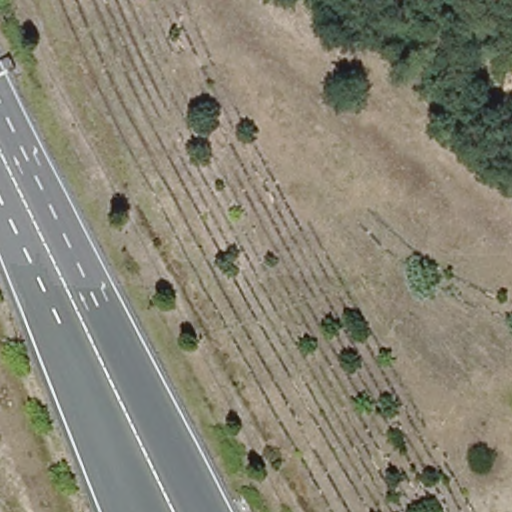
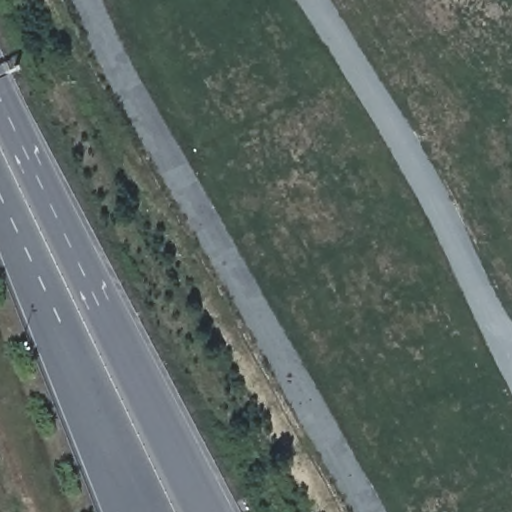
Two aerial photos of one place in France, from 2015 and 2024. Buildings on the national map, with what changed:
[]

